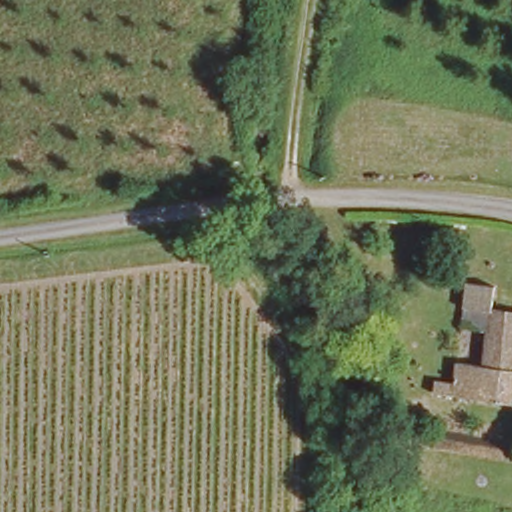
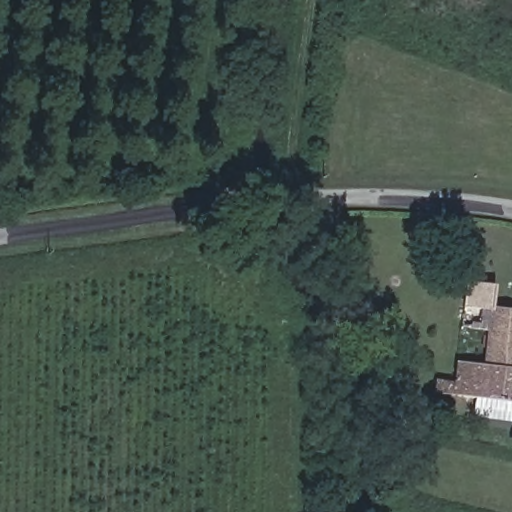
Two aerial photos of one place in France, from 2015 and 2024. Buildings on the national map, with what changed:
unchanged [(464,274),(492,277),(488,308),(512,312),(512,400),(449,386),(464,274)]

